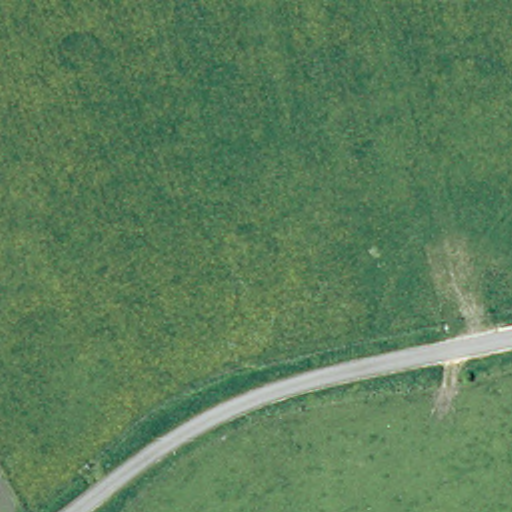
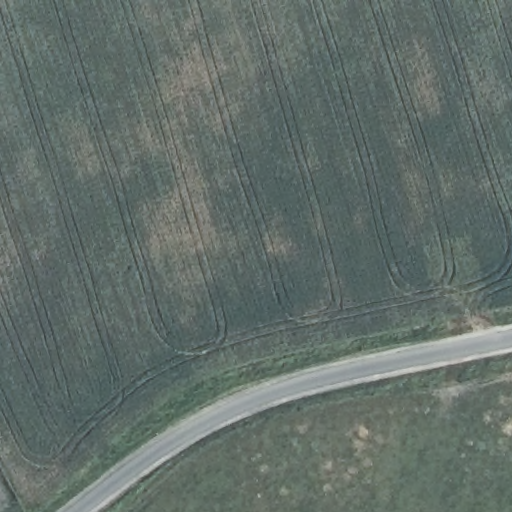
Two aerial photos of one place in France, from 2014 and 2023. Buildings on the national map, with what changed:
[]

